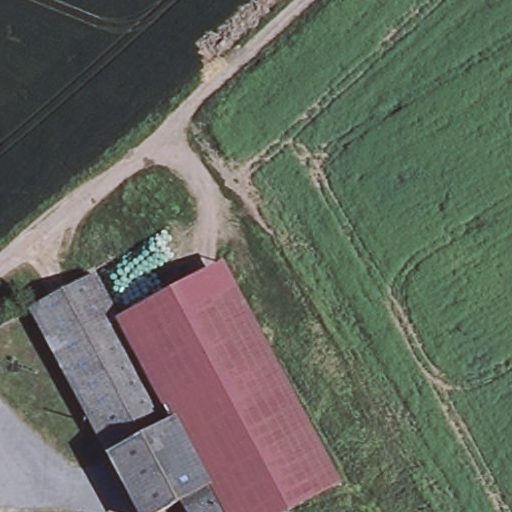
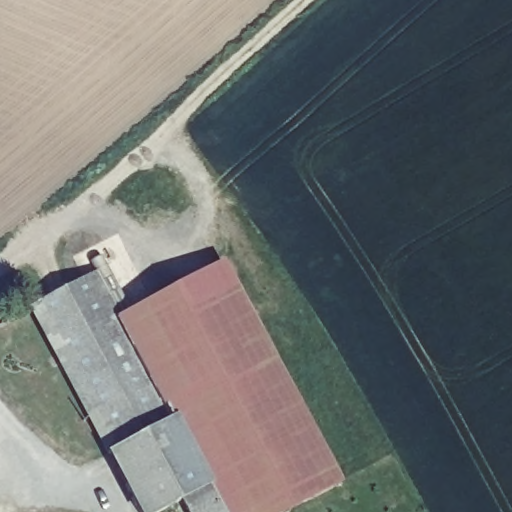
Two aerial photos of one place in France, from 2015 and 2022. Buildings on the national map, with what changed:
unchanged [(163,418),(116,317),(226,259),(344,483),(288,512),(224,512),(176,413),(163,418)]
unchanged [(161,512),(135,512),(30,307),(96,273),(116,317),(163,418),(176,413),(224,512),(182,512),(176,501),(161,512)]

